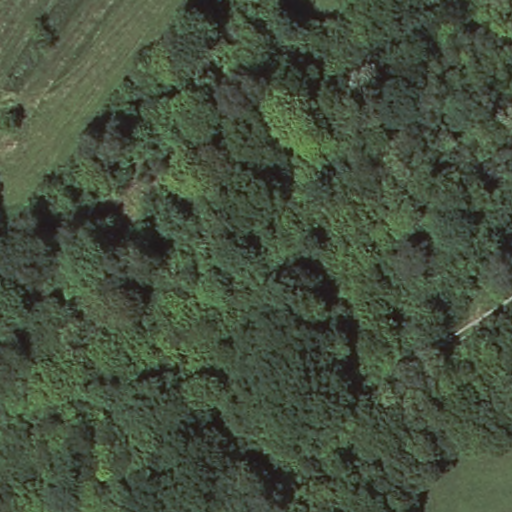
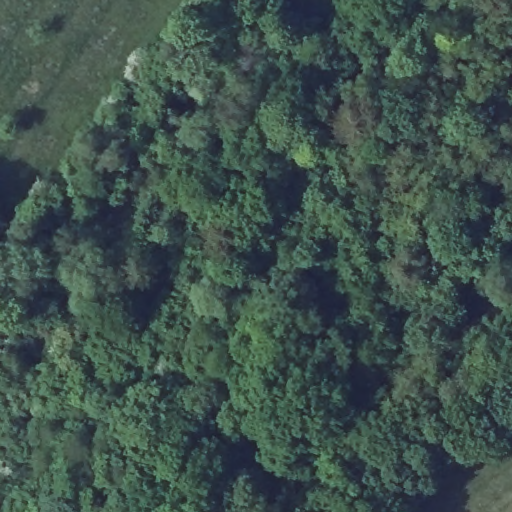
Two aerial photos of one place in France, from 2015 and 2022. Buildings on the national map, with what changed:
unchanged [(506,151),(512,143),(512,155),(506,151)]

